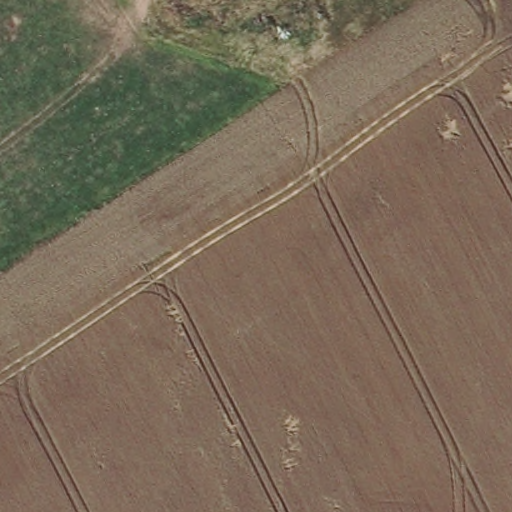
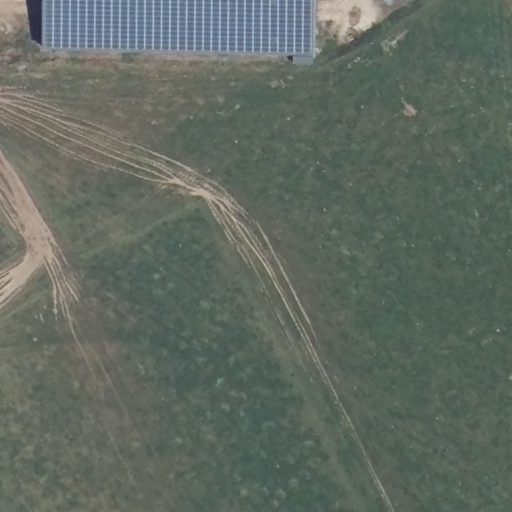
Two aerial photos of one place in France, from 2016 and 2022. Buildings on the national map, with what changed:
new [(43,0),(313,0),(313,38),(42,37),(43,0)]

